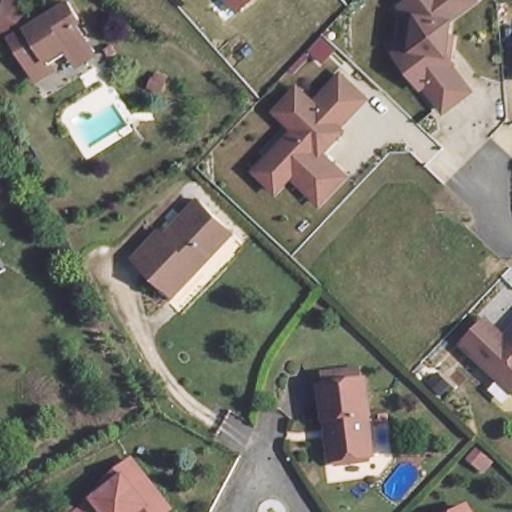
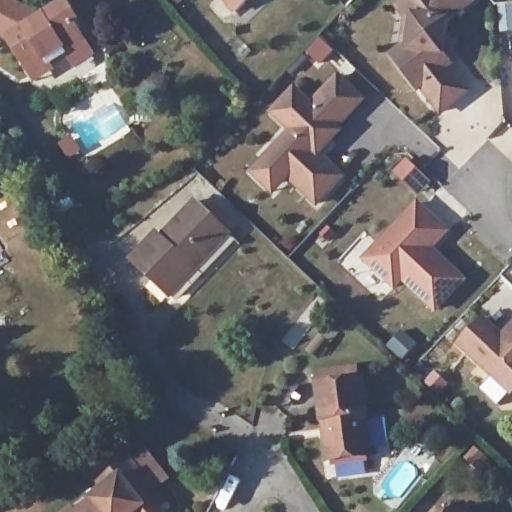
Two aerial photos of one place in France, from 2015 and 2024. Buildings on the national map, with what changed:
unchanged [(31,65),(11,31),(0,27),(0,7),(3,0),(14,0),(28,5),(33,12),(55,0),(69,0),(80,14),(75,16),(87,35),(96,49),(76,61),(67,49),(65,44),(47,55),(55,67),(39,77),(31,65)]
unchanged [(222,0),(251,0),(235,15),(222,0)]
unchanged [(452,70),(472,95),(446,116),(426,90),(423,93),(405,70),(396,59),(407,50),(411,22),(402,10),(408,6),(416,0),(475,0),(478,5),(451,25),(450,40),(454,40),(451,63),(455,67),(452,70)]
unchanged [(368,97),(342,122),(347,129),(325,152),(348,177),(320,207),(293,180),(278,194),(255,172),(292,129),(275,110),(298,85),(315,105),(342,74),(368,97)]
unchanged [(5,190),(0,194),(0,181),(5,190)]
unchanged [(156,282),(131,258),(156,230),(160,234),(191,199),(230,234),(195,269),(170,295),(156,282)]
new [(436,313),(403,282),(395,291),(362,259),(417,200),(450,232),(435,250),(467,280),(436,313)]
unchanged [(512,332),(512,392),(463,344),(486,320),(505,339),(512,332)]
unchanged [(323,422),(319,385),(362,379),(368,415),(363,415),(370,458),(332,462),(329,421),(323,422)]
unchanged [(105,485),(97,476),(127,454),(159,495),(166,503),(156,512),(70,512),(105,485)]
unchanged [(467,505),(471,512),(455,512),(467,505)]

